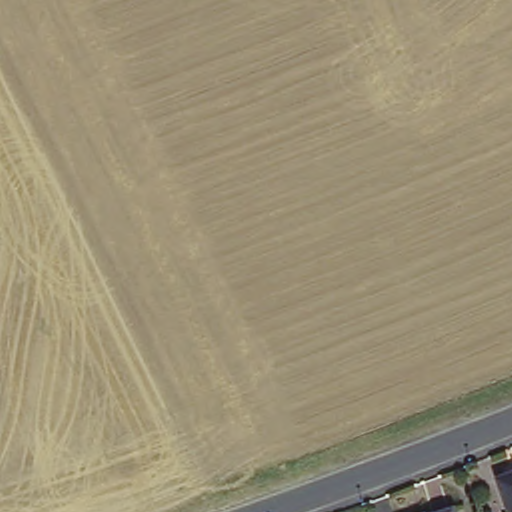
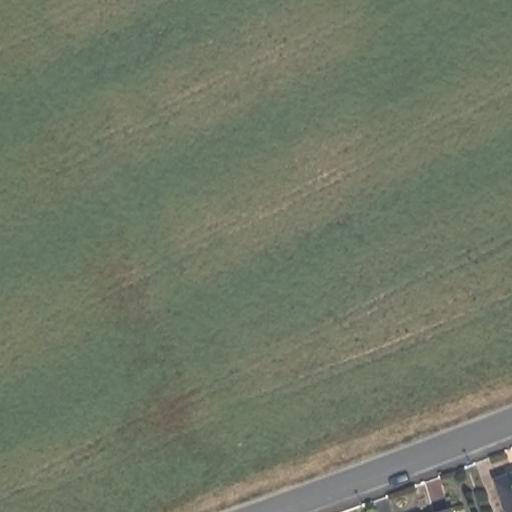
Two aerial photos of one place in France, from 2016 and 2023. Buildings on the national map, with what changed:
unchanged [(503,480),(512,477),(512,509),(503,480)]
unchanged [(455,512),(433,512),(453,505),(455,512)]

